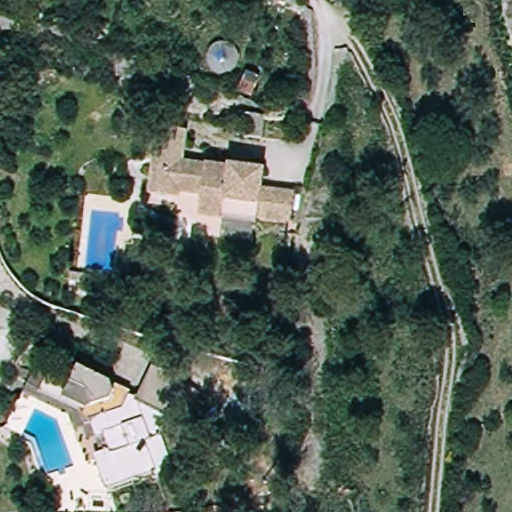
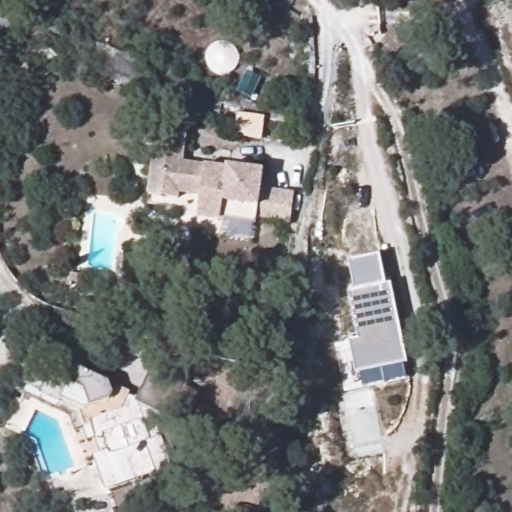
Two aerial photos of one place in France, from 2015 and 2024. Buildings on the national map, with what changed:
unchanged [(231,136),(233,114),(261,120),(257,142),(231,136)]
unchanged [(218,222),(195,219),(197,197),(176,195),(175,199),(144,193),(155,127),(184,131),(180,162),(225,169),(225,166),(233,167),(258,171),(257,188),(287,193),(283,224),(251,220),(250,226),(218,222)]
new [(356,375),(350,342),(359,340),(348,292),(355,291),(348,261),(380,254),(387,285),(392,283),(408,364),(356,375)]
unchanged [(96,473),(90,448),(106,444),(101,422),(90,424),(86,406),(70,396),(60,411),(40,398),(26,389),(37,371),(49,352),(64,361),(80,370),(89,356),(117,373),(120,384),(143,398),(162,366),(194,385),(175,417),(158,421),(171,474),(151,479),(100,491),(96,473)]

